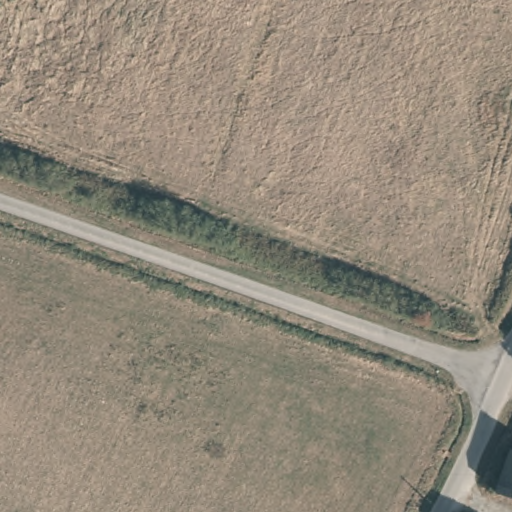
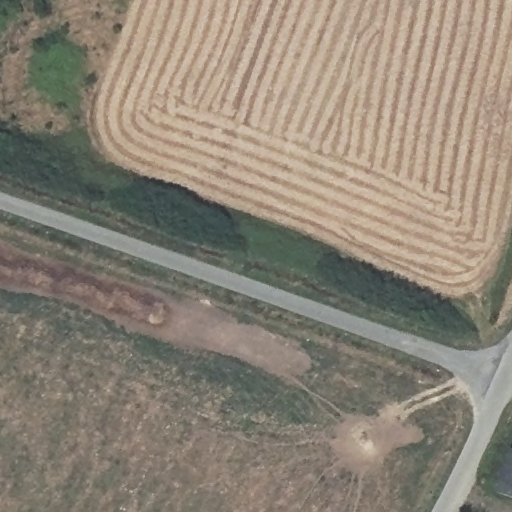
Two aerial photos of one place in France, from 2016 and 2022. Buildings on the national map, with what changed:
unchanged [(495,487),(510,442),(512,443),(512,493),(495,487)]

